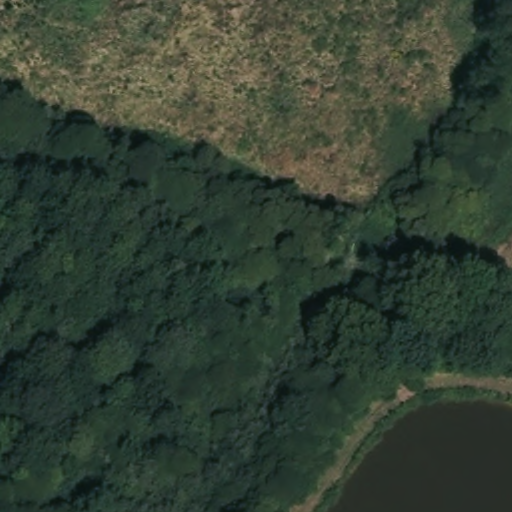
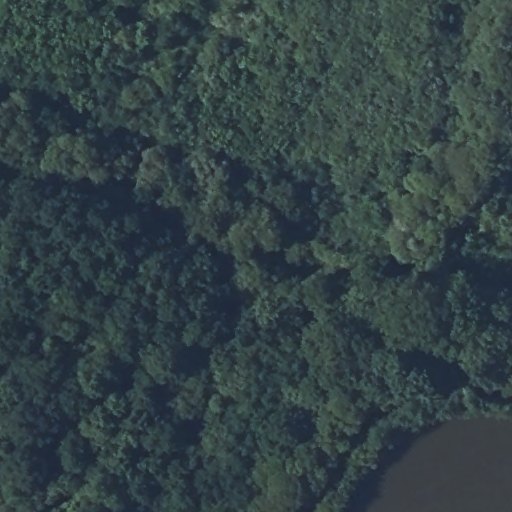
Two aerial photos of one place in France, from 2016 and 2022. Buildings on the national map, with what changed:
[]

